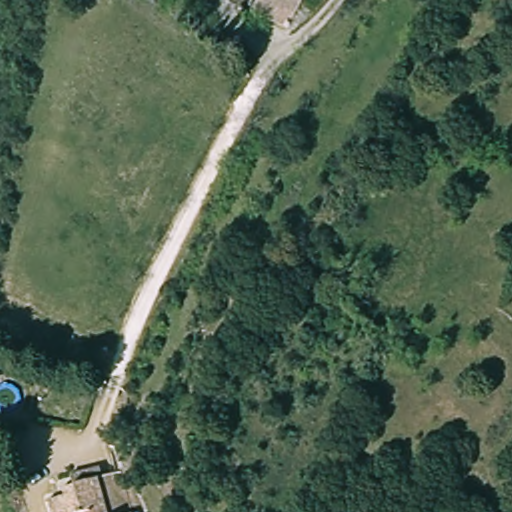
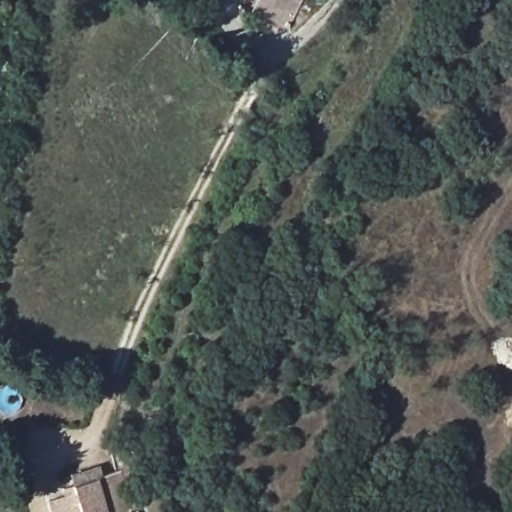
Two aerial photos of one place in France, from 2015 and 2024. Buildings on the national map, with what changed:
unchanged [(252,14),(257,0),(301,0),(288,30),(252,14)]
unchanged [(62,512),(56,493),(74,491),(70,483),(86,481),(84,472),(107,467),(116,512),(62,512)]

